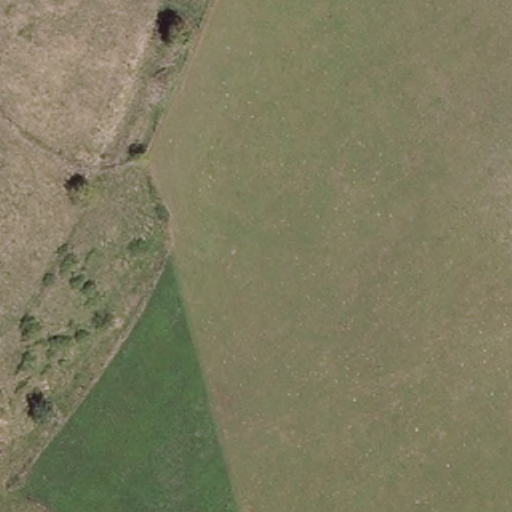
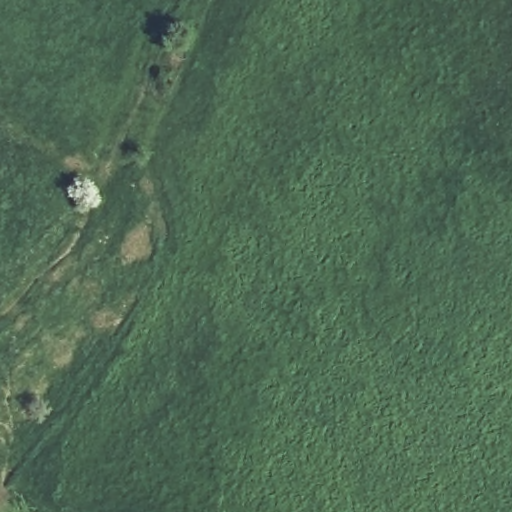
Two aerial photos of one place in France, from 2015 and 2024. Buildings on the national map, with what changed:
[]

